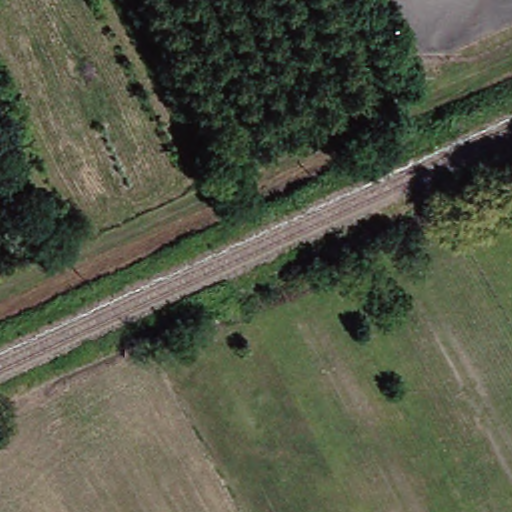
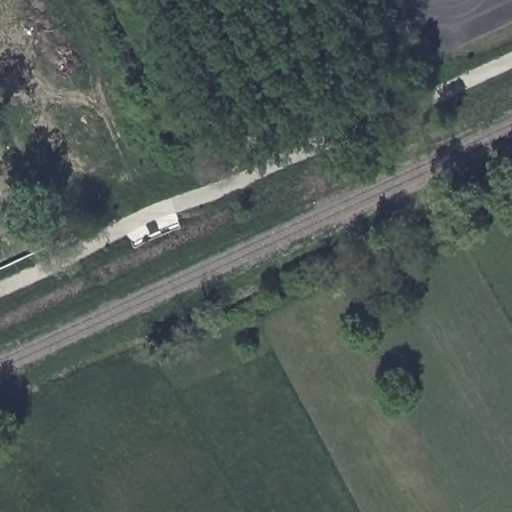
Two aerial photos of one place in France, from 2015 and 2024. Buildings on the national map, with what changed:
[]

